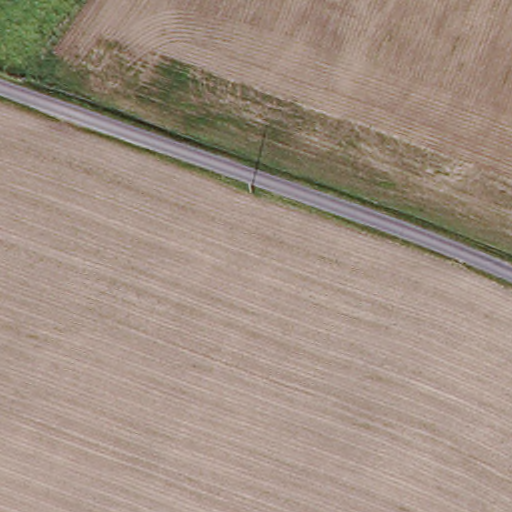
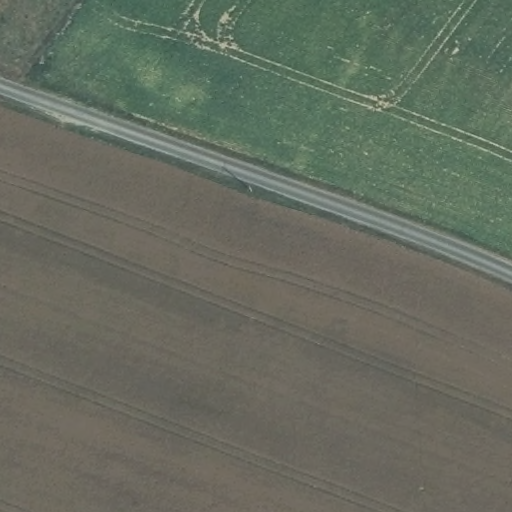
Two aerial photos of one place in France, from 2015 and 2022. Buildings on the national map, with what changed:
[]

